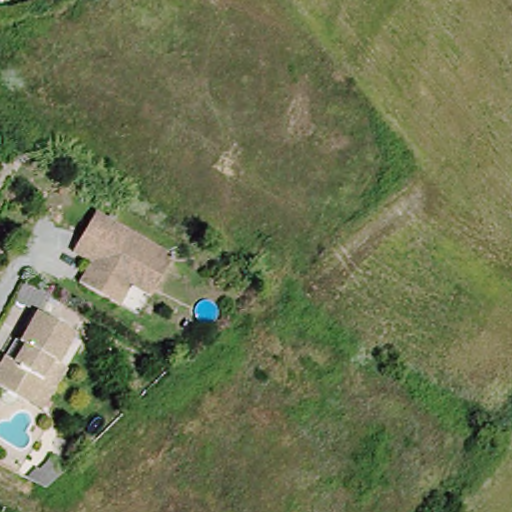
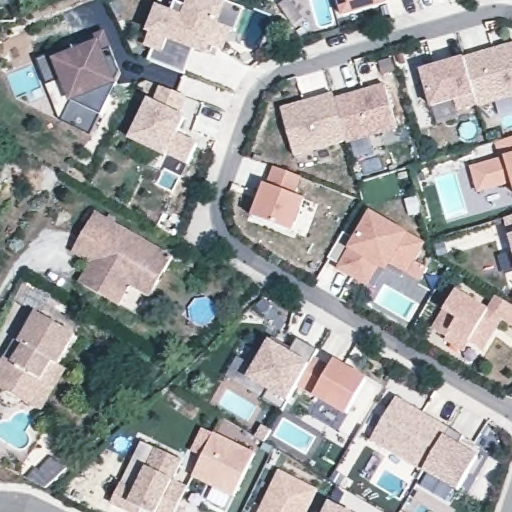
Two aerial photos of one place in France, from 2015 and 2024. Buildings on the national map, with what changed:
new [(235,30),(230,29),(223,52),(209,48),(206,54),(192,50),(185,74),(149,62),(153,50),(144,46),(152,33),(148,31),(158,6),(173,13),(178,3),(187,7),(189,0),(226,0),(225,3),(244,8),(235,30)]
new [(338,0),(387,0),(388,5),(343,19),(338,0)]
new [(32,62),(97,33),(113,65),(102,70),(107,83),(115,86),(99,118),(97,118),(88,137),(57,123),(42,88),(32,62)]
new [(453,102),(430,109),(418,71),(464,58),(512,43),(512,99),(456,115),(453,102)]
new [(399,132),(347,146),(333,99),(384,85),(399,132)]
new [(148,100),(153,103),(159,89),(184,98),(176,115),(182,118),(174,133),(195,143),(185,163),(165,153),(164,155),(129,138),(148,100)]
new [(294,158),(281,108),(331,93),(333,99),(346,143),(294,158)]
new [(495,141),(512,136),(512,191),(509,182),(477,191),(469,167),(500,158),(495,141)]
new [(263,186),(266,187),(273,168),(298,177),(291,196),(302,200),(290,232),(251,218),(263,186)]
new [(391,266),(388,273),(380,270),(369,286),(337,268),(339,264),(329,258),(342,233),(354,242),(371,211),(409,235),(424,244),(406,274),(391,266)]
unchanged [(131,287),(118,308),(77,283),(89,262),(72,251),(80,238),(94,215),(171,257),(155,285),(148,298),(131,287)]
new [(512,238),(507,221),(512,220),(512,238)]
new [(453,290),(485,310),(493,296),(512,307),(512,324),(510,326),(498,319),(479,350),(466,342),(461,350),(442,339),(443,337),(429,329),(453,290)]
unchanged [(72,340),(57,372),(67,378),(40,413),(0,388),(0,362),(27,312),(72,340)]
new [(314,398),(297,388),(288,401),(282,409),(265,399),(269,392),(248,378),(270,341),(289,352),(298,339),(317,350),(313,356),(332,365),(335,361),(368,379),(345,416),(314,398)]
new [(424,472),(370,443),(397,397),(448,428),(447,431),(424,472)]
new [(447,431),(461,439),(456,448),(476,459),(457,494),(422,475),(447,431)]
new [(235,500),(193,481),(215,433),(255,451),(235,500)]
new [(187,489),(176,512),(147,512),(143,511),(143,512),(127,512),(111,505),(120,485),(135,492),(147,468),(155,446),(184,460),(172,481),(187,489)]
unchanged [(66,465),(45,484),(30,474),(44,465),(51,456),(66,465)]
new [(309,512),(260,512),(278,472),(320,490),(309,512)]
new [(348,512),(326,512),(330,503),(348,512)]

